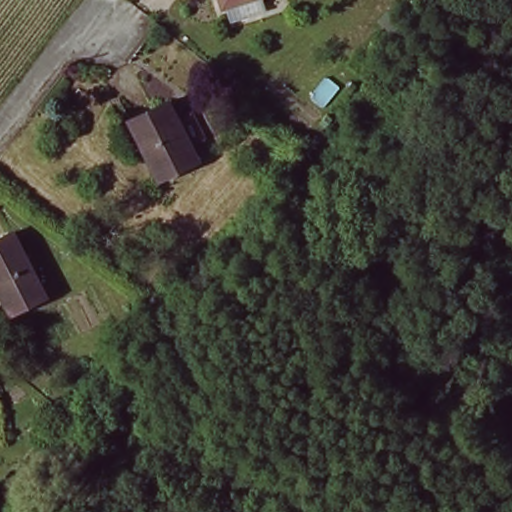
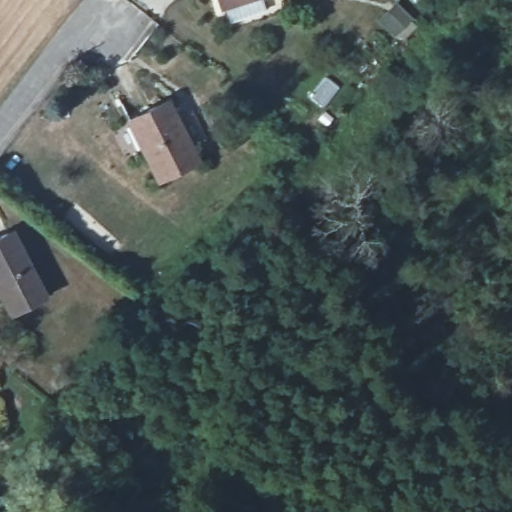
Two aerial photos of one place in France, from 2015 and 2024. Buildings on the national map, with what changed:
unchanged [(222,0),(241,0),(224,6),(222,0)]
unchanged [(132,116),(170,101),(194,156),(156,173),(132,116)]
unchanged [(0,232),(13,227),(42,299),(9,312),(0,292),(0,232)]

